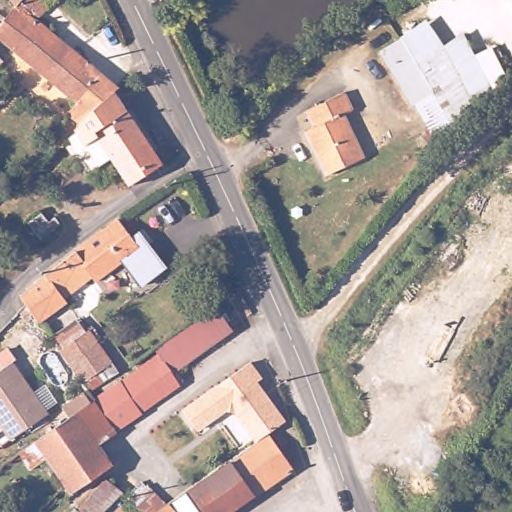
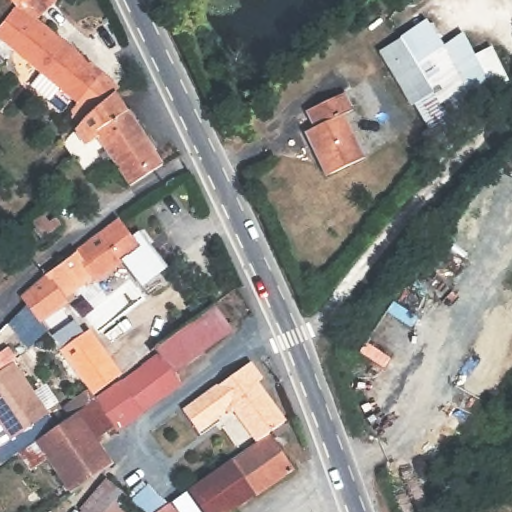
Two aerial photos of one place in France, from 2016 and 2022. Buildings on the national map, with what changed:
unchanged [(130,86),(102,113),(94,122),(82,113),(92,100),(7,32),(29,4),(25,0),(64,0),(49,20),(130,86)]
unchanged [(393,28),(420,15),(442,44),(463,36),(498,106),(458,131),(403,40),(393,28)]
unchanged [(458,131),(435,145),(380,54),(403,40),(458,131)]
unchanged [(86,132),(94,122),(102,113),(130,86),(131,84),(171,155),(145,171),(135,155),(109,170),(86,132)]
unchanged [(303,111),(341,94),(348,110),(343,113),(364,158),(332,174),(323,156),(316,159),(303,133),(311,128),(303,111)]
unchanged [(35,278),(111,221),(124,240),(132,234),(139,244),(157,271),(132,289),(114,263),(75,292),(69,285),(54,297),(59,305),(31,325),(19,309),(14,301),(35,278)]
unchanged [(76,413),(96,397),(157,355),(155,350),(219,304),(234,324),(172,372),(180,383),(100,445),(76,413)]
unchanged [(52,337),(80,316),(119,368),(101,381),(94,372),(85,380),(52,337)]
unchanged [(35,394),(46,387),(57,404),(0,444),(0,353),(5,350),(35,394)]
unchanged [(230,410),(199,430),(183,407),(251,362),(263,379),(259,382),(287,423),(283,425),(259,442),(255,445),(230,410)]
unchanged [(85,425),(100,445),(114,464),(67,493),(45,462),(31,471),(20,453),(76,413),(85,425)]
unchanged [(248,450),(255,445),(283,425),(309,460),(274,485),(271,482),(248,450)]
unchanged [(271,482),(230,511),(208,479),(214,475),(225,467),(240,456),(248,450),(271,482)]
unchanged [(79,510),(105,477),(122,491),(131,499),(122,509),(111,501),(102,512),(81,512),(79,510)]
unchanged [(215,488),(230,511),(230,512),(151,512),(132,498),(144,483),(169,503),(208,479),(215,488)]

